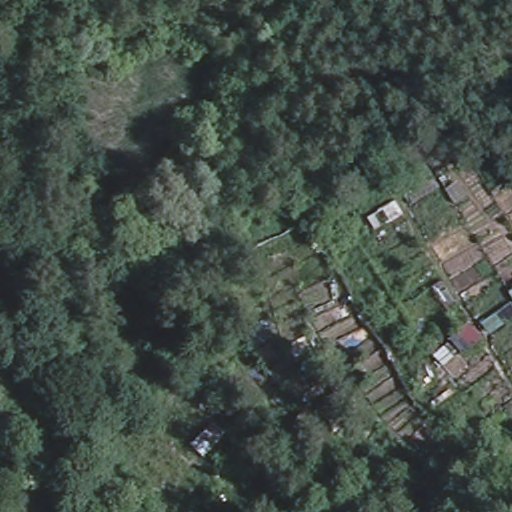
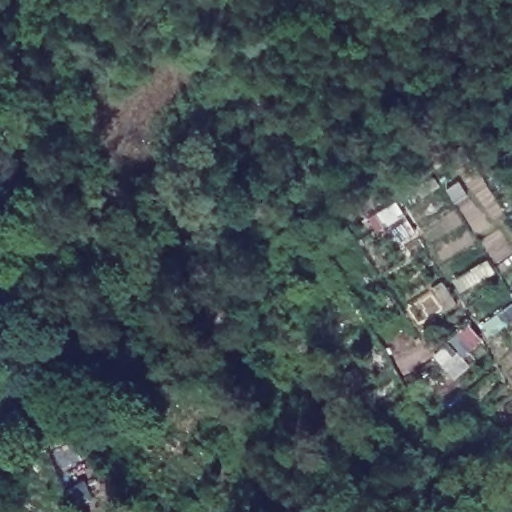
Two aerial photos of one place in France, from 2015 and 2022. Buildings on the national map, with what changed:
[]

